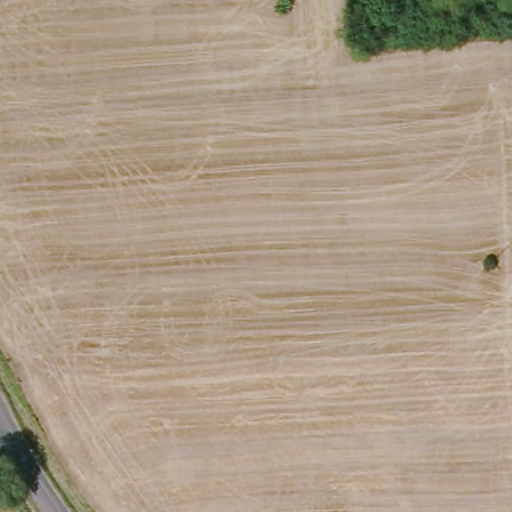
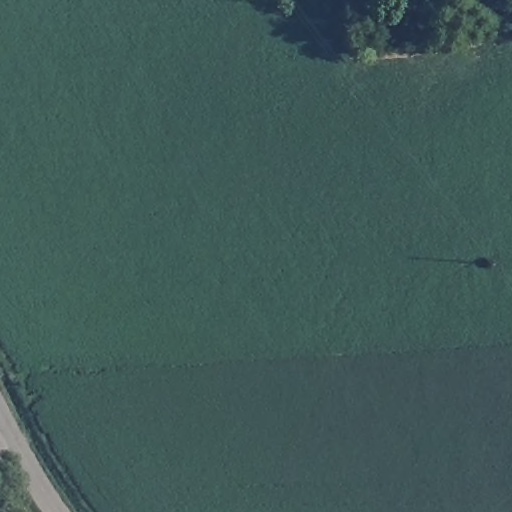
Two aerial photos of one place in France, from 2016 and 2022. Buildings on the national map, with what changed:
[]

